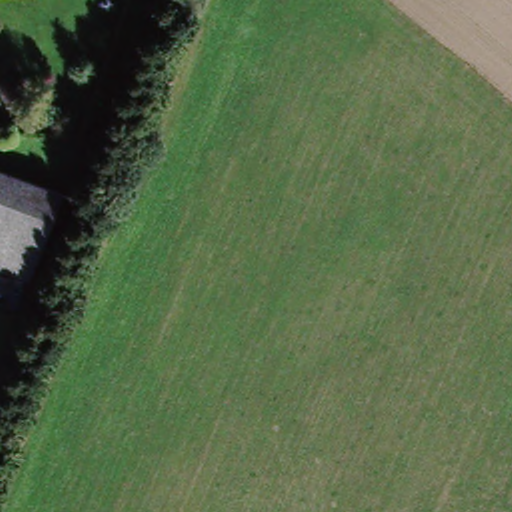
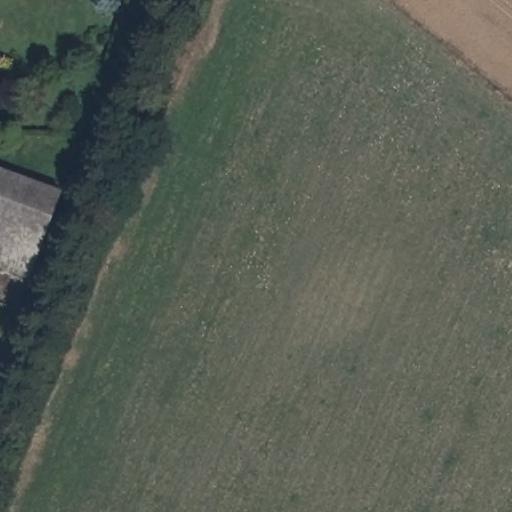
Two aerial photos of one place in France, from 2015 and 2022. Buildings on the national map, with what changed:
unchanged [(27,285),(0,275),(0,177),(58,197),(27,285)]

